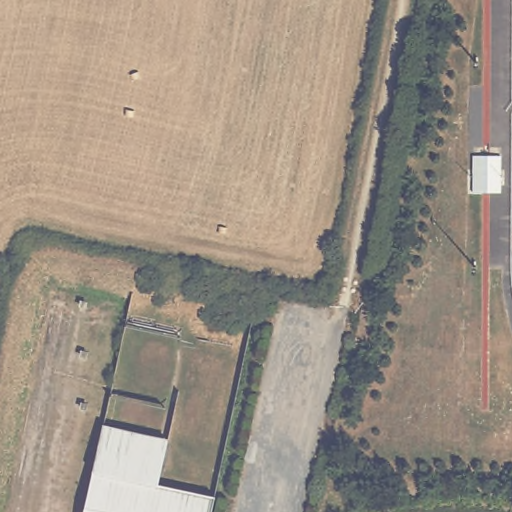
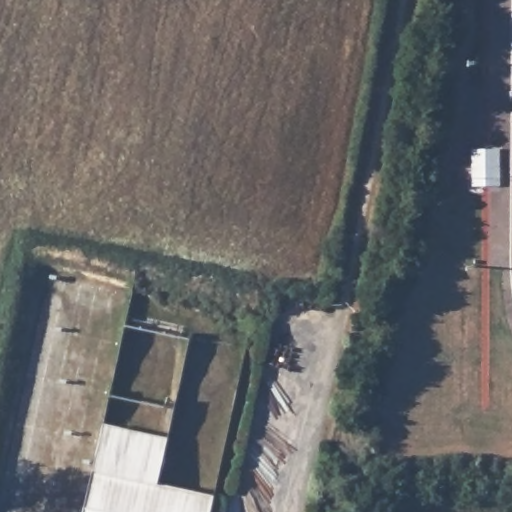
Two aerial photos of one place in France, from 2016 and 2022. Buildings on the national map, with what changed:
unchanged [(102,422),(170,437),(161,481),(92,466),(102,422)]
unchanged [(161,481),(214,493),(210,512),(83,512),(92,466),(161,481)]

